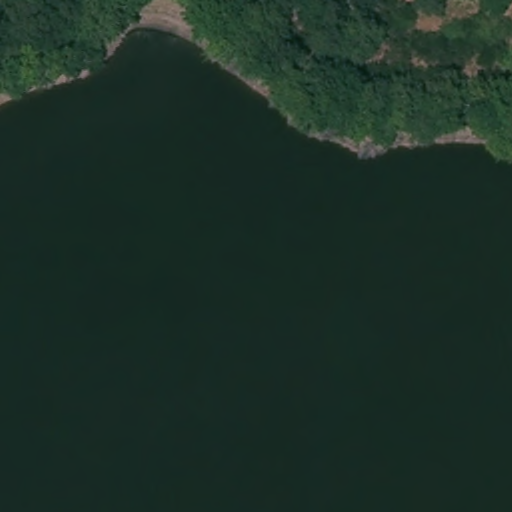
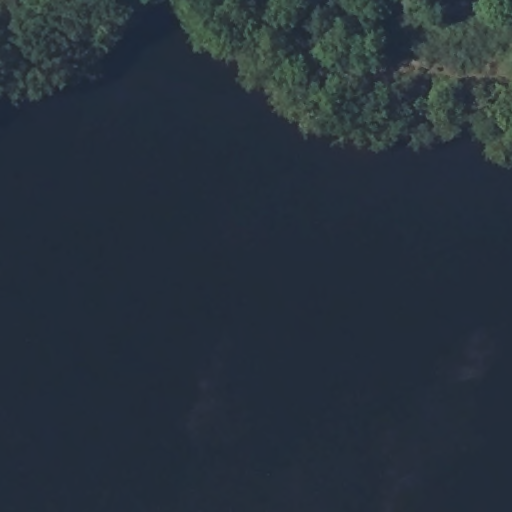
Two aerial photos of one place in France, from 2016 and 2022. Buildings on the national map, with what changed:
[]

